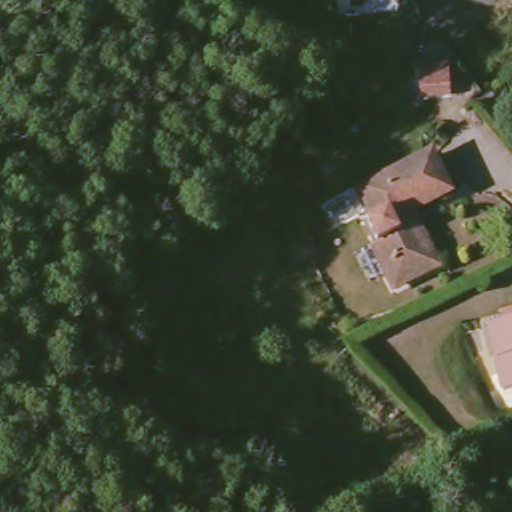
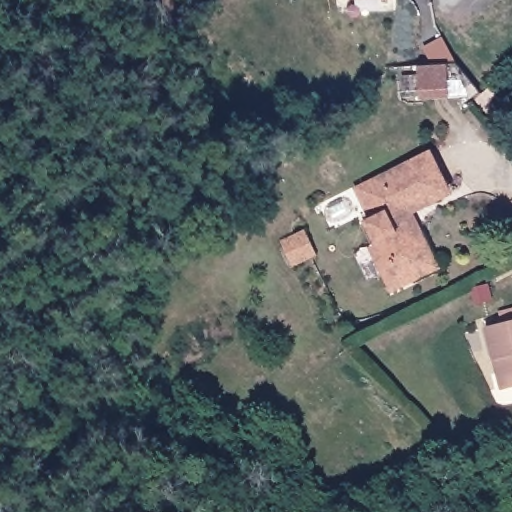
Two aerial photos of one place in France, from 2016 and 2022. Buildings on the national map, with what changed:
unchanged [(433,255),(390,278),(368,239),(372,238),(359,214),(366,209),(353,184),(420,147),(437,180),(399,203),(407,217),(412,214),(433,255)]
unchanged [(294,240),(306,262),(286,273),(274,252),(294,240)]
unchanged [(487,334),(512,322),(512,388),(487,334)]

